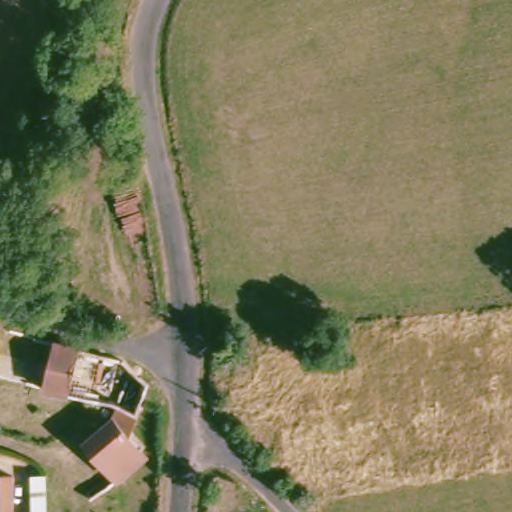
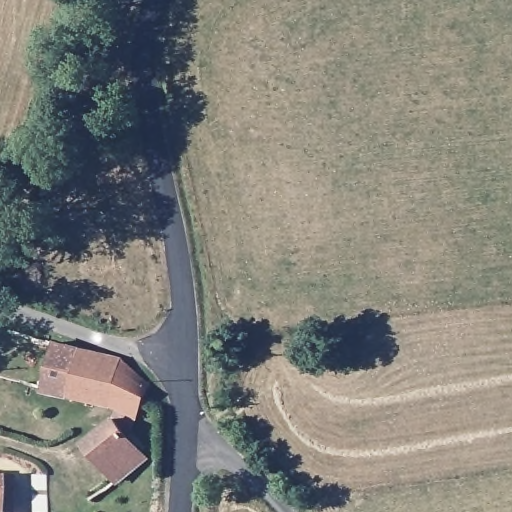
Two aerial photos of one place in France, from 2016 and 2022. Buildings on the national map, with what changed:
new [(56,340),(123,357),(150,383),(138,418),(114,406),(44,391),(56,340)]
demolished [(43,389),(55,341),(82,348),(69,398),(43,389)]
unchanged [(117,412),(150,460),(124,474),(90,434),(117,412)]
unchanged [(17,475),(14,512),(0,512),(0,475),(17,475)]
unchanged [(50,475),(49,512),(31,512),(32,475),(50,475)]

